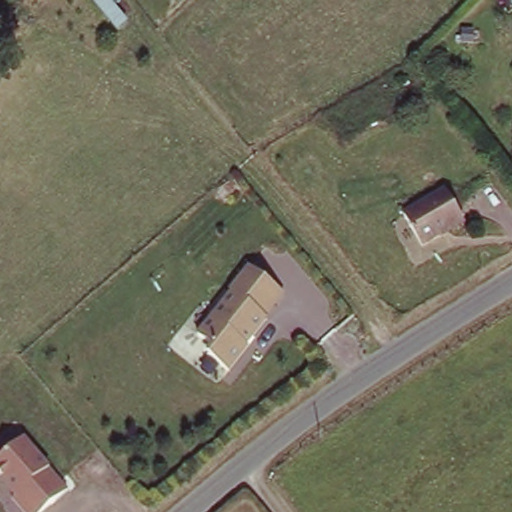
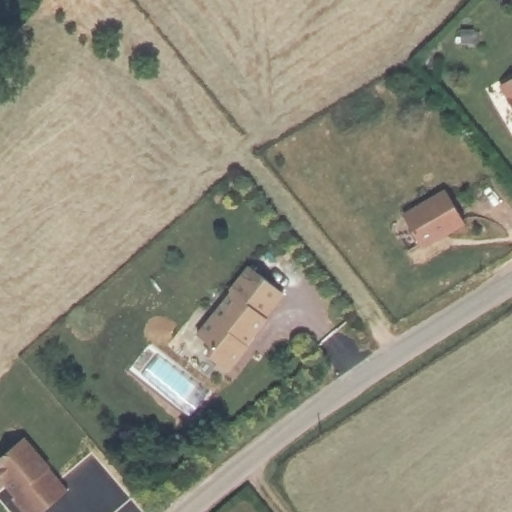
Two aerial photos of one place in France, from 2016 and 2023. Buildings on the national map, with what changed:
new [(512,82),(512,108),(500,89),(512,82)]
unchanged [(447,191),(464,221),(422,246),(405,216),(447,191)]
unchanged [(290,293),(272,316),(273,320),(235,367),(199,332),(248,265),(290,293)]
unchanged [(29,438),(73,486),(40,512),(34,512),(0,470),(0,457),(29,438)]

